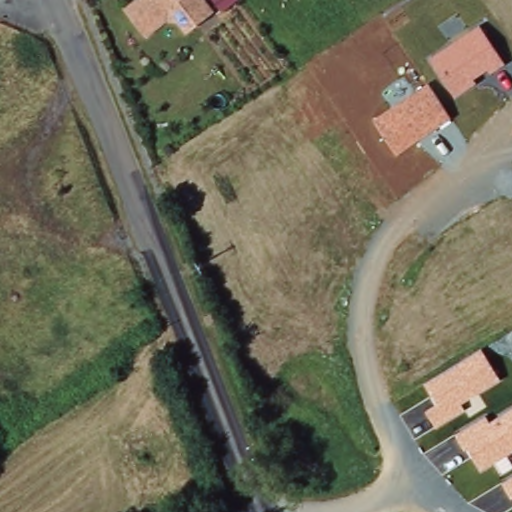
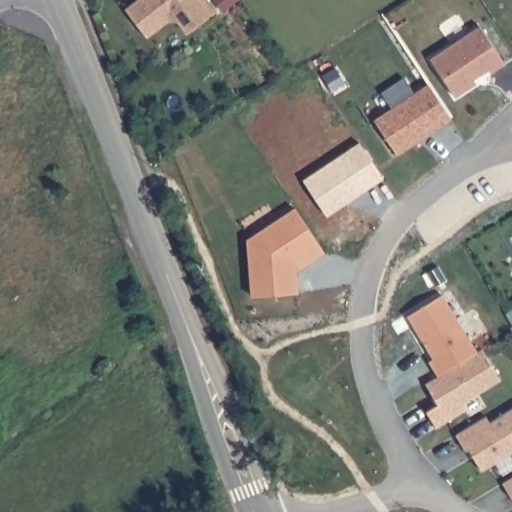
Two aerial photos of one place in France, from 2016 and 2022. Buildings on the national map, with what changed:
unchanged [(213,15),(186,36),(172,20),(145,37),(122,7),(134,0),(203,0),(213,15)]
unchanged [(479,25),(505,64),(489,74),(486,70),(473,79),(476,84),(454,96),(430,58),(479,25)]
unchanged [(428,85),(450,118),(396,155),(374,120),(428,85)]
new [(297,212),(326,255),(297,275),(299,296),(255,300),(250,244),(297,212)]
new [(477,351),(438,376),(429,360),(432,357),(407,315),(442,293),(477,351)]
unchanged [(498,380),(460,402),(464,410),(434,426),(426,410),(437,406),(424,385),(480,350),(498,380)]
unchanged [(512,409),(512,452),(480,470),(470,450),(466,452),(455,435),(484,417),(488,423),(512,409)]
unchanged [(503,483),(512,478),(512,498),(511,498),(503,483)]

